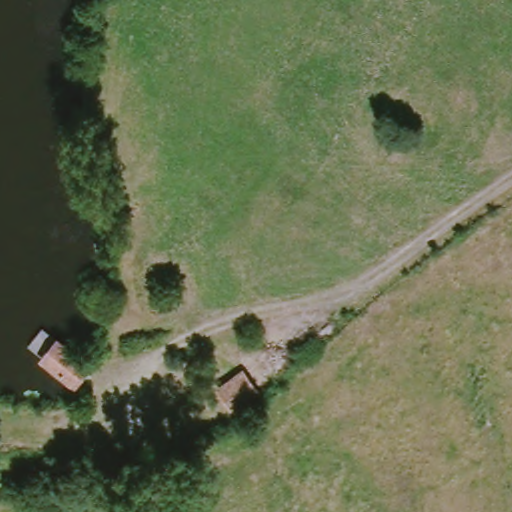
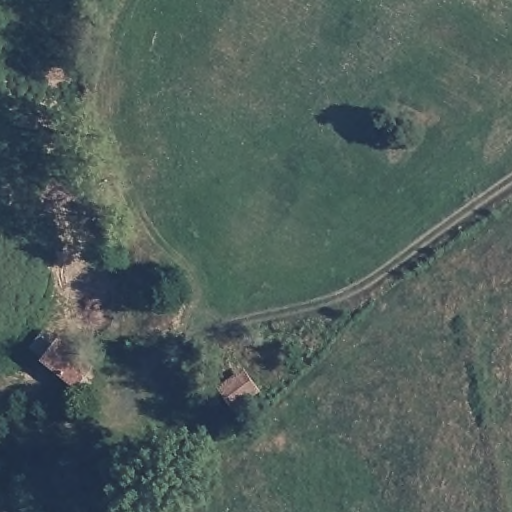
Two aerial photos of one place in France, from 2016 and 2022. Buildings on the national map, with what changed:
unchanged [(92,370),(73,393),(37,363),(55,340),(92,370)]
unchanged [(243,371),(259,393),(229,414),(214,391),(243,371)]

